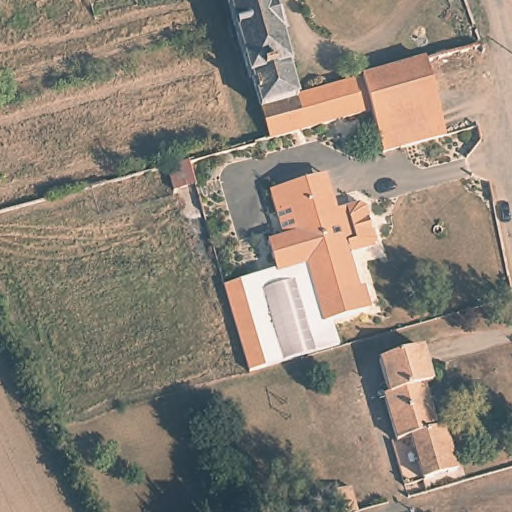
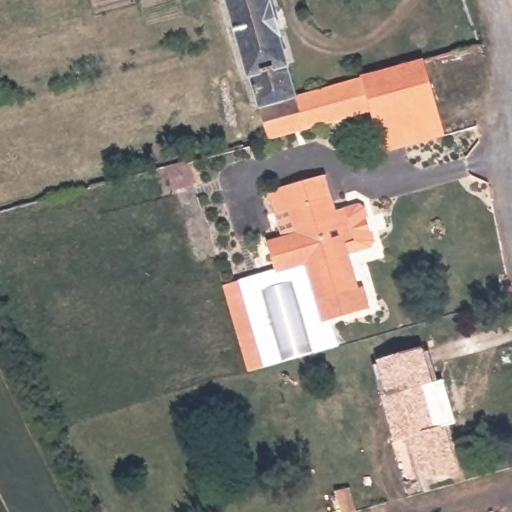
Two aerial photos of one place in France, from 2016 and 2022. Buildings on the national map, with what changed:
unchanged [(263,119),(252,78),(247,80),(239,47),(238,47),(230,17),(225,0),(271,0),(271,1),(272,1),(282,38),(290,67),(288,68),(297,96),(301,111),(264,121),(263,119)]
unchanged [(405,113),(393,70),(482,45),(491,77),(433,94),(437,104),(405,113)]
unchanged [(301,111),(297,96),(393,70),(405,113),(437,104),(446,136),(382,154),(371,111),(270,140),(264,121),(301,111)]
unchanged [(360,204),(366,207),(376,241),(372,248),(353,254),(363,286),(370,310),(323,323),(306,265),(276,273),(267,242),(282,238),(275,211),(269,191),(291,185),(325,175),(331,195),(336,211),(360,204)]
unchanged [(239,281),(265,367),(249,372),(224,285),(239,281)]
unchanged [(423,386),(436,429),(444,426),(457,471),(423,481),(410,437),(397,441),(383,396),(388,395),(379,360),(421,348),(432,383),(423,386)]
unchanged [(355,512),(341,512),(338,503),(335,492),(350,487),(353,500),(357,511),(355,512)]

